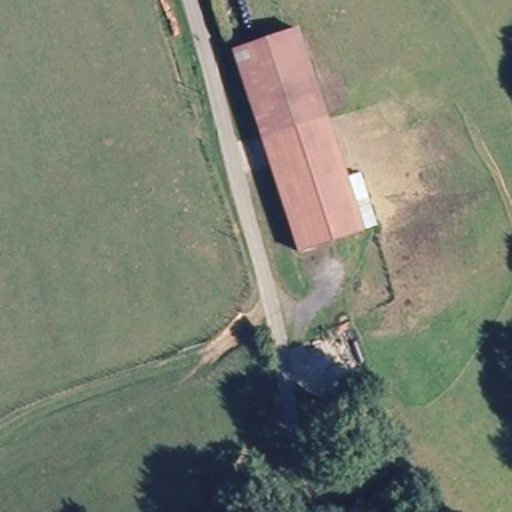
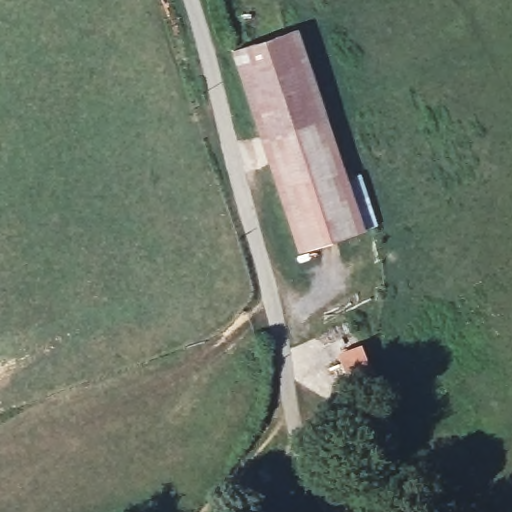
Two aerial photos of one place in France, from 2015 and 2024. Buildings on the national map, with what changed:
unchanged [(233,51),(299,28),(367,229),(299,252),(233,51)]

